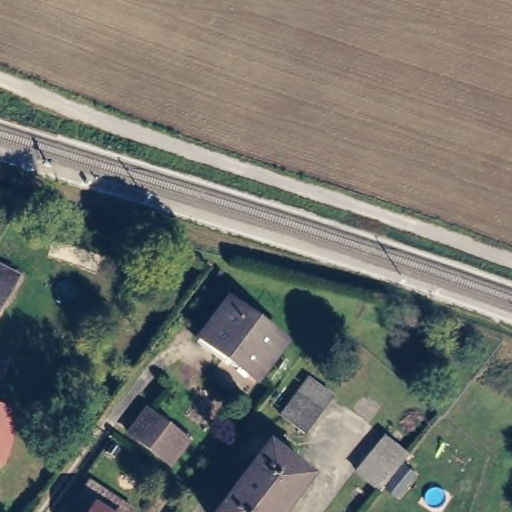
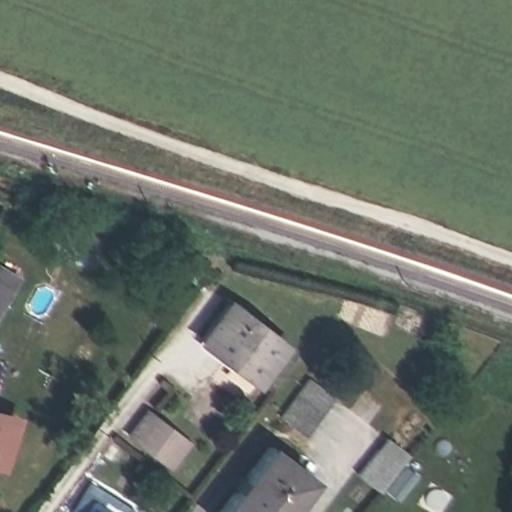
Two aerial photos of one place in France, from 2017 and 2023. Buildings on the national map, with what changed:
unchanged [(9,295),(0,311),(0,289),(9,295)]
unchanged [(263,386),(206,344),(233,308),(289,349),(263,386)]
unchanged [(334,398),(306,434),(284,417),(312,381),(334,398)]
unchanged [(188,440),(171,464),(132,433),(150,409),(188,440)]
unchanged [(7,465),(0,462),(0,414),(20,420),(7,465)]
unchanged [(413,457),(384,495),(363,479),(392,441),(413,457)]
unchanged [(236,512),(283,452),(316,477),(290,512),(236,512)]
unchanged [(80,512),(73,506),(91,481),(134,510),(133,512),(80,512)]

